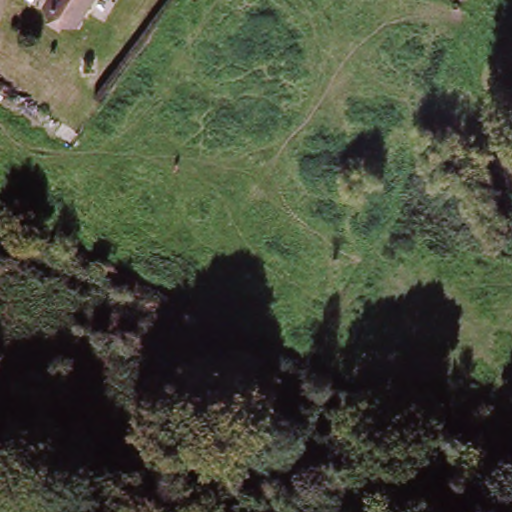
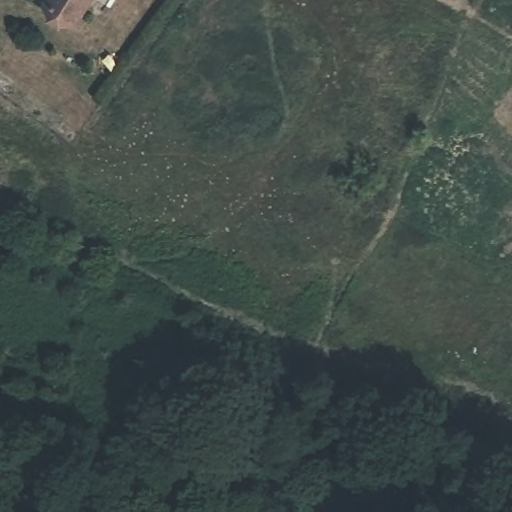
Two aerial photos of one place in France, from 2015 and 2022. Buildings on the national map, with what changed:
unchanged [(50,0),(92,0),(75,29),(44,11),(50,0)]

